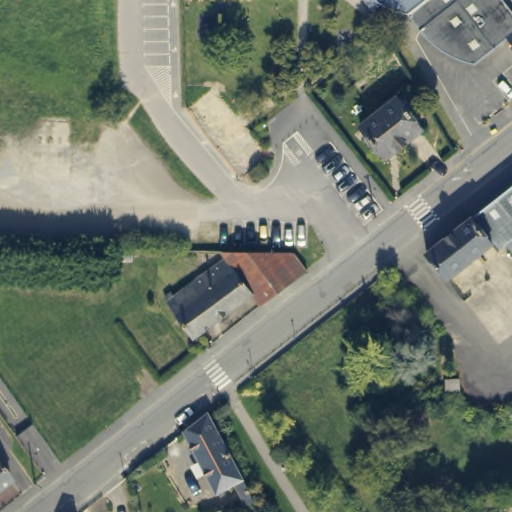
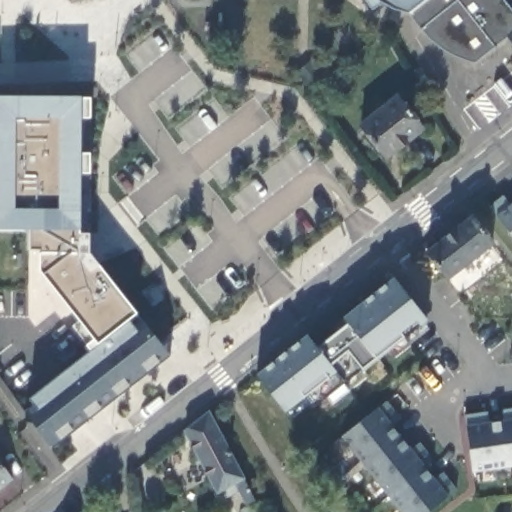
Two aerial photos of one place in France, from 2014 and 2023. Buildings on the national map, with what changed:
unchanged [(365,0),(409,0),(420,15),(447,48),(450,53),(458,63),(453,60),(443,55),(435,49),(428,43),(422,37),(418,31),(408,17),(395,12),(390,10),(380,6),(373,11),(365,0)]
unchanged [(510,41),(477,68),(465,64),(458,63),(450,53),(447,48),(420,15),(409,0),(502,0),(512,12),(512,40),(510,41)]
unchanged [(510,41),(512,40),(512,43),(510,41)]
demolished [(215,85),(250,132),(267,156),(242,175),(189,104),(215,85)]
unchanged [(425,125),(387,155),(362,123),(400,93),(425,125)]
new [(80,116),(81,152),(90,153),(90,172),(80,171),(80,231),(81,234),(90,234),(91,253),(136,313),(129,320),(136,331),(141,319),(170,356),(51,449),(24,412),(34,405),(30,399),(98,344),(40,271),(41,252),(29,251),(30,230),(0,230),(0,97),(81,98),(90,99),(90,117),(80,116)]
demolished [(511,241),(500,249),(494,242),(495,241),(487,230),(485,227),(481,222),(485,219),(482,214),(484,213),(481,209),(512,184),(512,242),(511,241)]
new [(489,208),(505,195),(507,199),(512,196),(512,236),(489,208)]
unchanged [(476,217),(482,213),(485,216),(484,218),(487,223),(483,225),(487,231),(488,233),(496,245),(495,245),(450,278),(438,263),(431,253),(476,217)]
demolished [(255,295),(194,339),(165,299),(171,295),(175,298),(207,275),(204,251),(295,253),(307,270),(263,306),(255,295)]
new [(303,396),(285,412),(255,375),(306,334),(317,346),(348,324),(342,317),(392,277),(428,319),(423,323),(429,329),(395,356),(389,349),(361,371),(366,375),(330,404),(326,399),(312,409),(303,396)]
new [(383,404),(398,421),(388,429),(397,441),(363,467),(340,438),(383,404)]
unchanged [(240,471),(241,469),(250,488),(242,492),(233,474),(213,484),(181,424),(205,405),(240,471)]
new [(464,417),(486,414),(487,423),(502,421),(501,410),(512,409),(512,467),(472,472),(464,417)]
new [(397,441),(407,452),(416,445),(430,463),(421,470),(387,497),(386,497),(363,467),(397,441)]
unchanged [(19,481),(0,495),(0,455),(19,481)]
new [(421,470),(430,482),(440,475),(453,492),(429,512),(398,512),(387,497),(421,470)]
unchanged [(221,512),(200,512),(199,509),(217,502),(221,512)]

